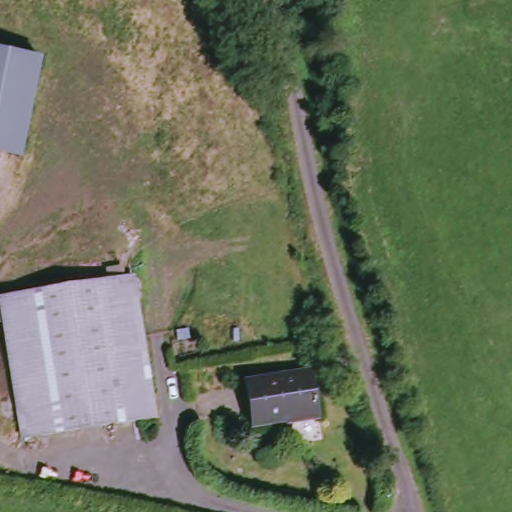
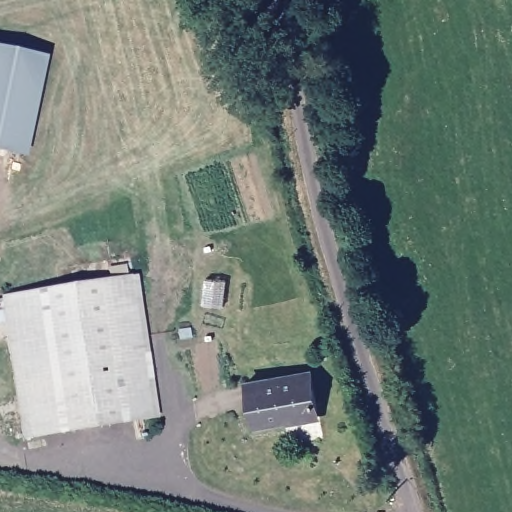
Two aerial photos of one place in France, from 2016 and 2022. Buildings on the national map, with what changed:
unchanged [(19,158),(0,154),(0,51),(38,59),(19,158)]
unchanged [(106,270),(119,269),(120,278),(131,277),(149,418),(15,435),(0,321),(0,295),(106,278),(106,270)]
unchanged [(248,420),(242,377),(305,368),(312,412),(248,420)]

